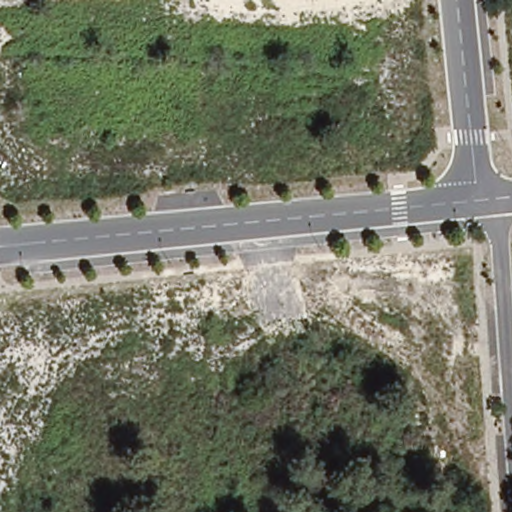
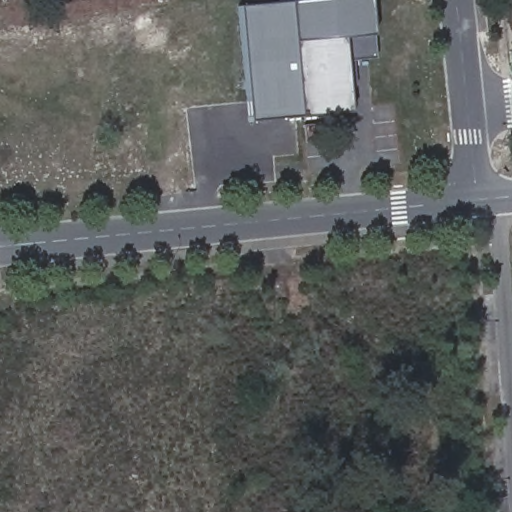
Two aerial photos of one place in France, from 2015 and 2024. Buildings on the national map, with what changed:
new [(372,0),(377,59),(349,61),(353,110),(254,121),(244,9),(344,0),(372,0)]

